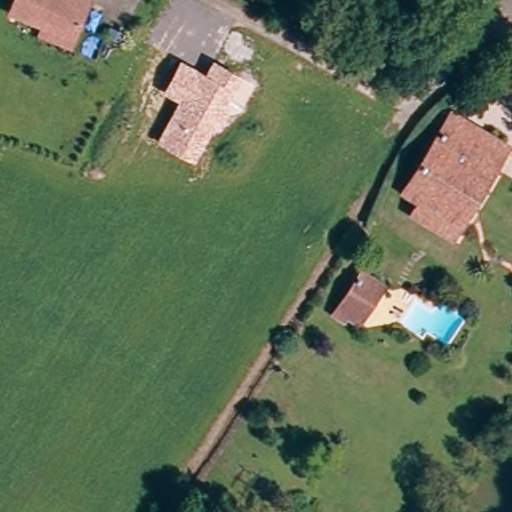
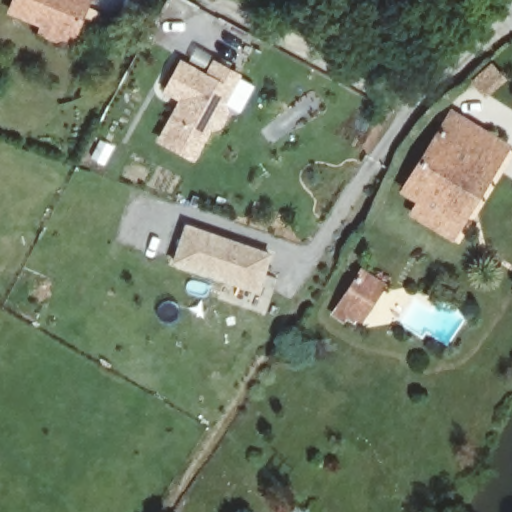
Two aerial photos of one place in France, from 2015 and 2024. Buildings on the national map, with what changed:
unchanged [(45,28),(49,21),(16,6),(19,0),(94,0),(80,31),(75,42),(45,28)]
unchanged [(157,142),(178,101),(164,93),(181,59),(205,73),(214,59),(241,76),(227,103),(230,113),(221,130),(212,129),(196,162),(157,142)]
unchanged [(423,220),(432,207),(415,198),(453,114),(491,133),(509,141),(498,164),(469,227),(462,238),(423,220)]
new [(172,264),(186,225),(274,255),(260,295),(172,264)]
unchanged [(377,286),(348,325),(330,311),(355,273),(377,286)]

